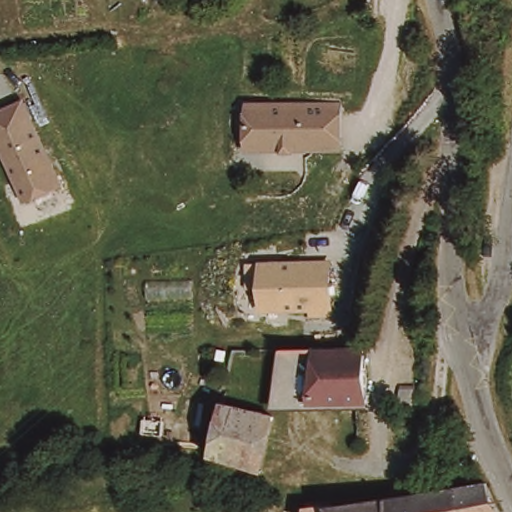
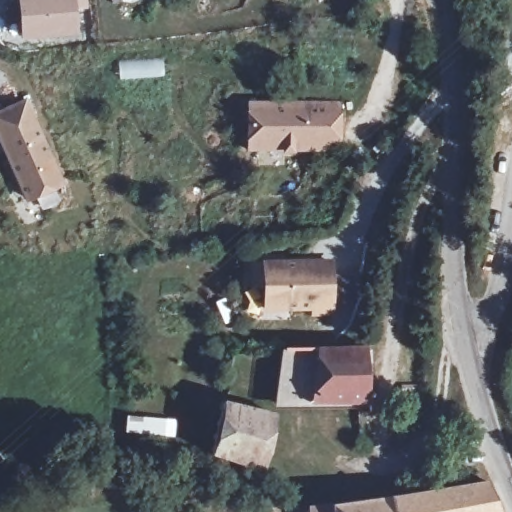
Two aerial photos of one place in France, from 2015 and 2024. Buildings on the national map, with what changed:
new [(89,10),(77,11),(78,38),(20,41),(18,0),(88,0),(89,10)]
unchanged [(0,117),(0,112),(32,98),(41,121),(15,133),(25,157),(17,160),(0,117)]
unchanged [(311,148),(254,148),(256,100),(342,101),(340,138),(340,148),(311,148)]
unchanged [(41,121),(66,182),(32,197),(17,160),(25,157),(15,133),(41,121)]
unchanged [(337,318),(310,319),(310,312),(263,314),(263,261),(336,258),(337,318)]
unchanged [(371,400),(317,400),(301,400),(277,396),(284,344),(293,345),(310,347),(316,346),(336,345),(359,344),(366,344),(371,400)]
unchanged [(273,414),(261,470),(209,458),(211,449),(220,416),(223,402),(273,414)]
unchanged [(450,489),(470,486),(499,482),(511,512),(408,512),(406,496),(413,495),(450,489)]
unchanged [(320,512),(320,510),(347,506),(358,504),(393,498),(406,496),(408,512),(320,512)]

